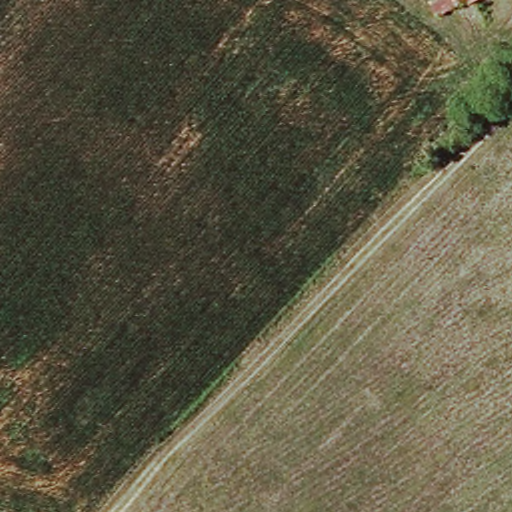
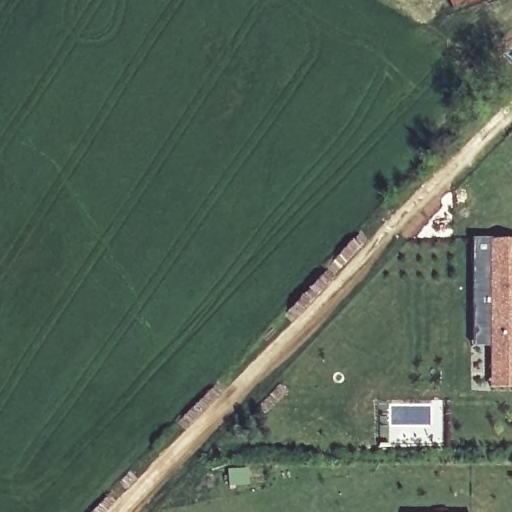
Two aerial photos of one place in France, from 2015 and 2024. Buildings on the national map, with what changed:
unchanged [(489,0),(476,7),(474,5),(443,17),(435,5),(443,0),(489,0)]
new [(489,370),(489,349),(471,349),(470,309),(470,241),(490,241),(490,245),(512,245),(512,389),(489,389),(489,370)]

